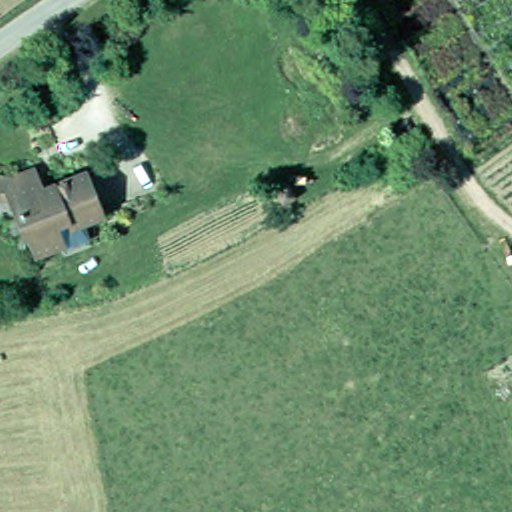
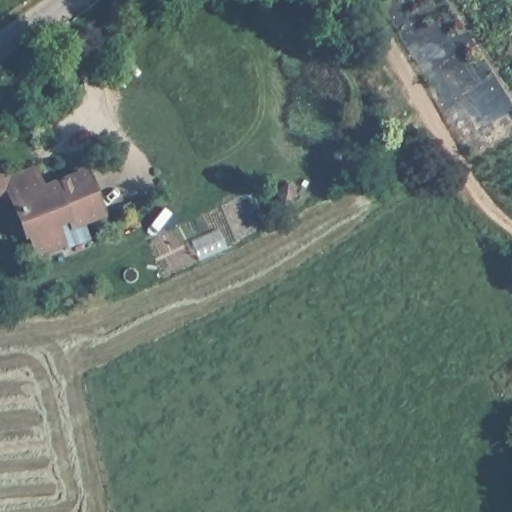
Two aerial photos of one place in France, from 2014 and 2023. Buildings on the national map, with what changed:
unchanged [(34,249),(29,238),(13,199),(0,198),(0,178),(11,179),(34,169),(39,181),(44,191),(86,172),(89,180),(105,214),(73,229),(60,234),(64,242),(65,245),(43,255),(38,257),(34,249)]
unchanged [(289,183),(301,195),(289,206),(277,194),(289,183)]

